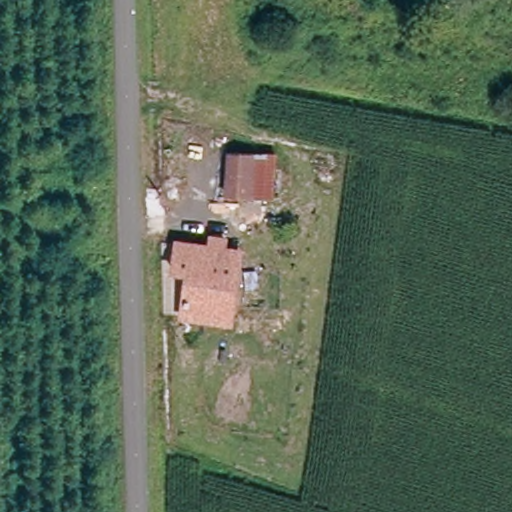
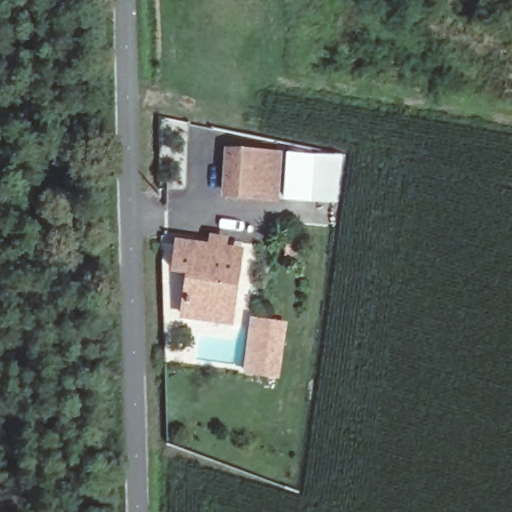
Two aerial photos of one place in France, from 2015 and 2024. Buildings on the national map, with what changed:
unchanged [(229,148),(278,157),(273,200),(225,195),(229,148)]
new [(336,205),(289,201),(292,155),(340,157),(336,205)]
unchanged [(240,254),(228,322),(180,313),(185,272),(173,270),(177,240),(240,254)]
new [(250,317),(287,322),(278,380),(242,374),(250,317)]

